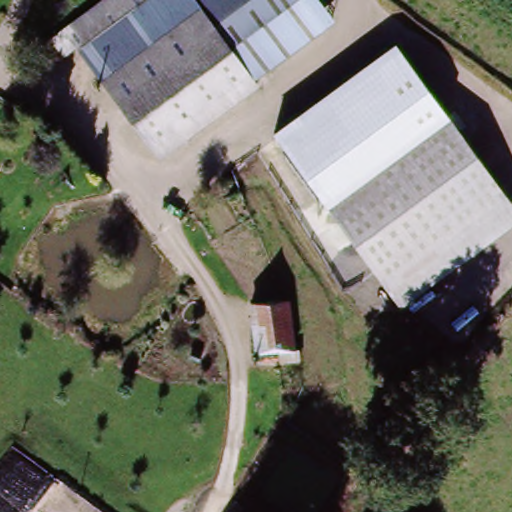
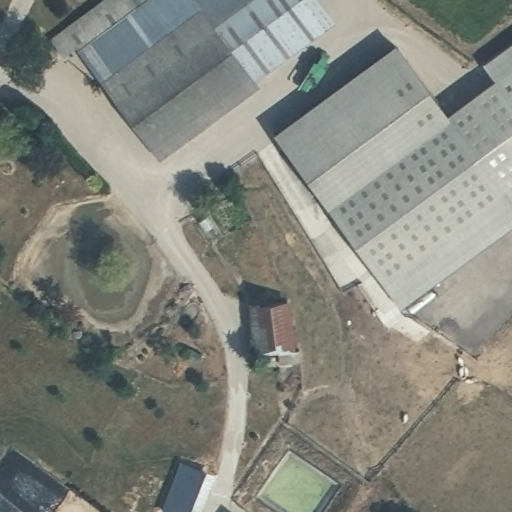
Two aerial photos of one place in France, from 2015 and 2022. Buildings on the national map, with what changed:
unchanged [(106,0),(141,0),(73,51),(63,31),(106,0)]
unchanged [(259,80),(263,87),(159,161),(73,51),(141,0),(321,0),(337,20),(259,80)]
new [(482,62),(512,40),(512,208),(447,120),(442,115),(494,79),(482,62)]
unchanged [(326,211),(274,140),(389,50),(447,120),(326,211)]
unchanged [(326,211),(447,120),(512,208),(512,227),(399,308),(326,211)]
unchanged [(258,313),(289,310),(294,349),(264,353),(258,313)]

